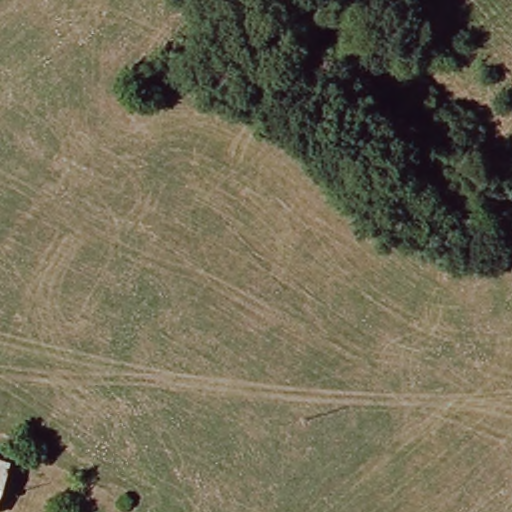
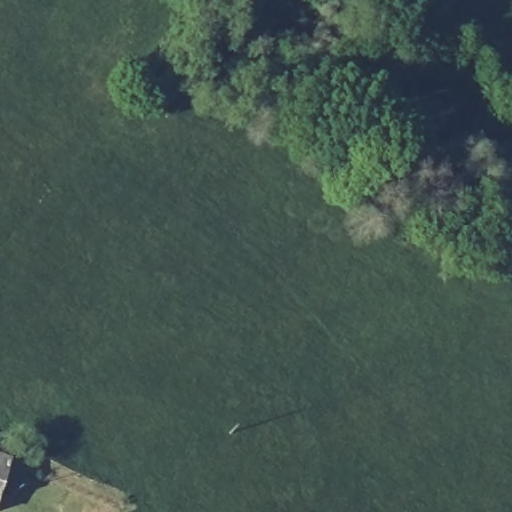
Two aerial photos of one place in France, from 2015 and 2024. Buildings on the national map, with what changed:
unchanged [(0,490),(0,458),(9,461),(0,490)]

